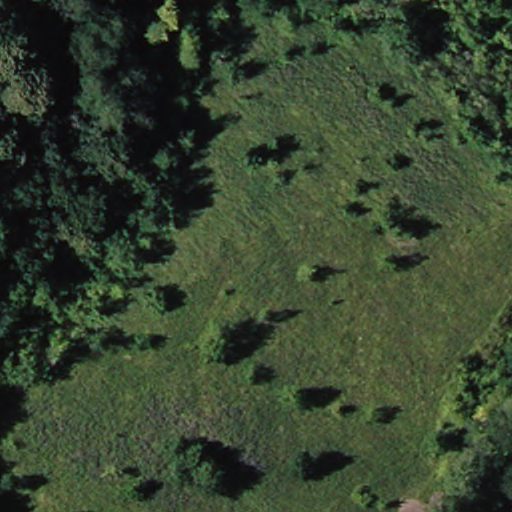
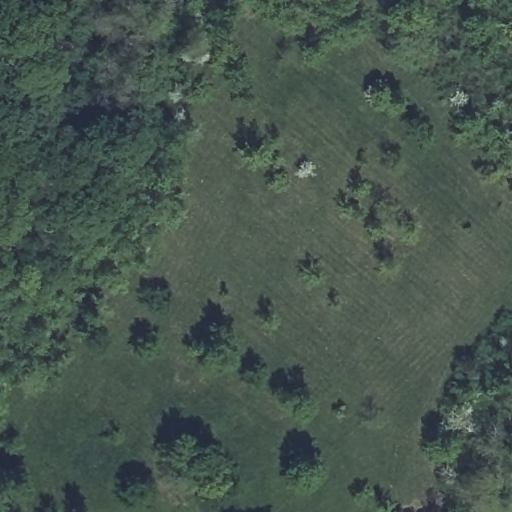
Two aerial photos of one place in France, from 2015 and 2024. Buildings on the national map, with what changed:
[]

